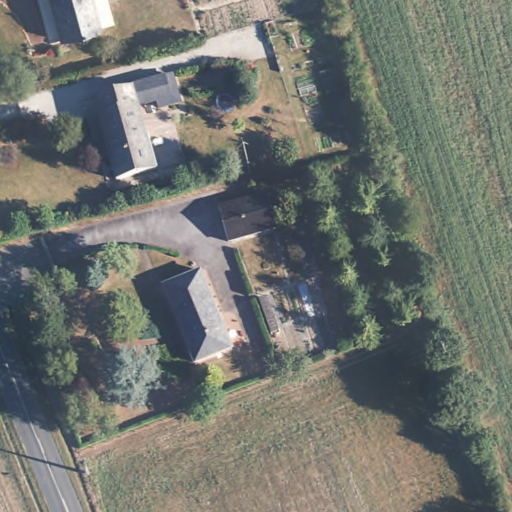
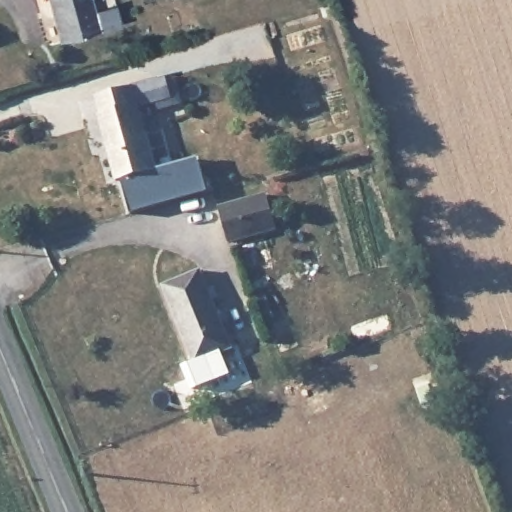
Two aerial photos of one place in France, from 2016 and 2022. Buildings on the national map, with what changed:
unchanged [(62,38),(52,0),(92,0),(99,29),(62,38)]
unchanged [(118,178),(96,110),(103,109),(98,95),(130,86),(168,74),(175,95),(137,106),(155,167),(118,178)]
new [(199,155),(209,192),(129,213),(118,178),(155,167),(199,155)]
unchanged [(242,238),(229,242),(217,208),(265,192),(273,214),(277,226),(242,238)]
unchanged [(202,270),(234,348),(197,362),(164,284),(202,270)]

